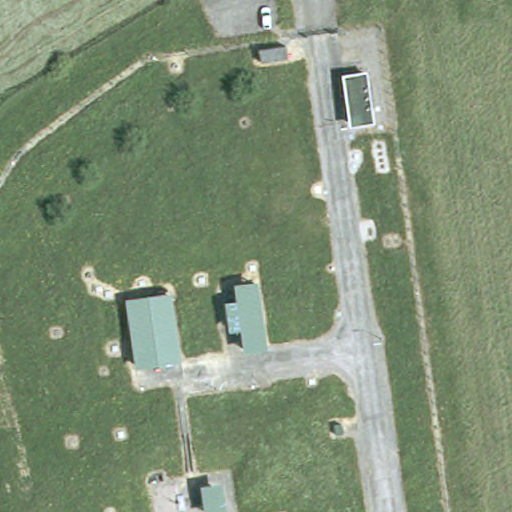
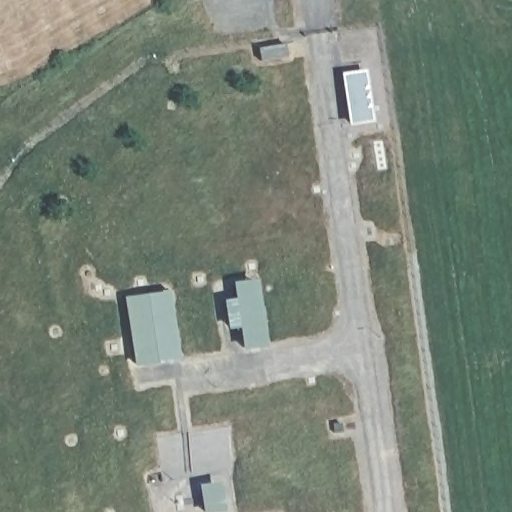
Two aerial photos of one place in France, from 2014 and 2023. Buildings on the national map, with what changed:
unchanged [(370,74),(374,123),(349,124),(343,76),(370,74)]
unchanged [(266,348),(243,349),(238,326),(225,326),(224,302),(242,302),(239,281),(256,278),(266,348)]
unchanged [(174,356),(135,363),(128,300),(169,296),(174,356)]

